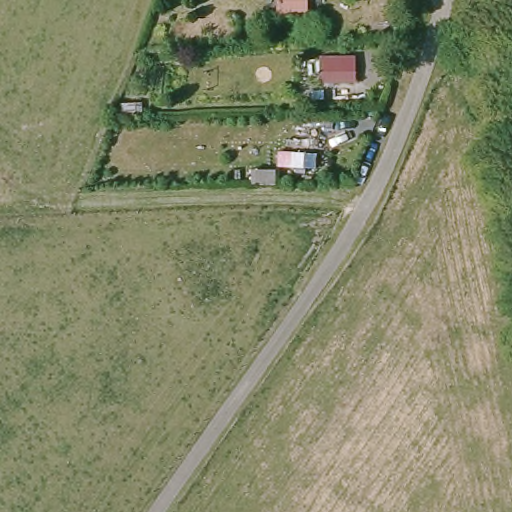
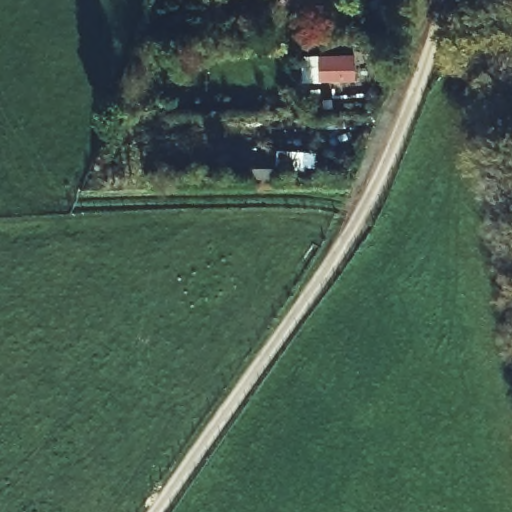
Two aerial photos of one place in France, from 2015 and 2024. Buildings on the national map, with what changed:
unchanged [(307,11),(279,10),(278,0),(308,0),(307,11)]
unchanged [(355,56),(355,80),(321,81),(323,54),(355,56)]

